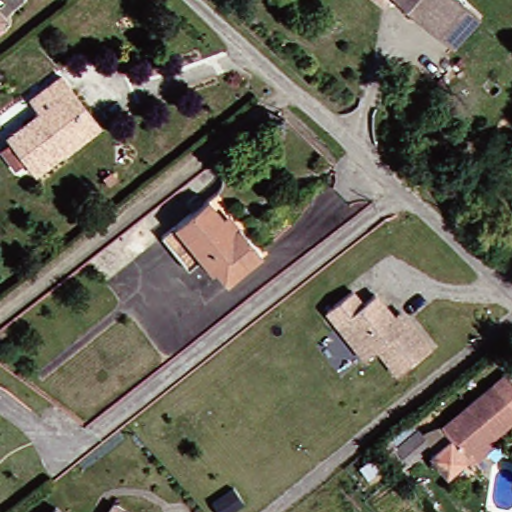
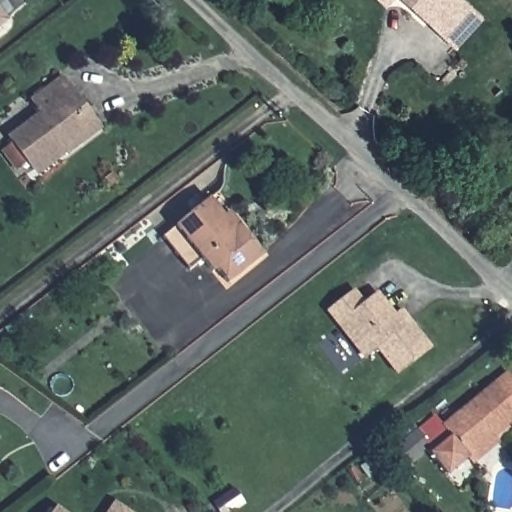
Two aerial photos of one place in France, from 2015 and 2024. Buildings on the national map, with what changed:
unchanged [(433,36),(391,0),(454,0),(460,5),(433,36)]
unchanged [(52,100),(69,127),(45,146),(51,152),(19,176),(0,151),(0,140),(25,121),(14,106),(59,73),(70,89),(52,100)]
unchanged [(96,122),(55,157),(51,152),(45,146),(69,127),(52,100),(70,89),(96,122)]
unchanged [(160,235),(170,227),(207,199),(229,229),(234,225),(257,256),(221,285),(212,272),(207,276),(196,262),(185,270),(160,235)]
unchanged [(348,290),(360,302),(370,293),(389,315),(396,310),(425,347),(395,377),(369,348),(360,356),(321,313),(348,290)]
unchanged [(466,468),(458,460),(437,477),(424,457),(443,442),(433,430),(508,368),(512,373),(512,416),(483,439),(490,447),(466,468)]
unchanged [(405,420),(425,442),(393,471),(375,450),(405,420)]
unchanged [(123,512),(101,512),(107,502),(123,512)]
unchanged [(59,512),(46,512),(50,506),(59,512)]

